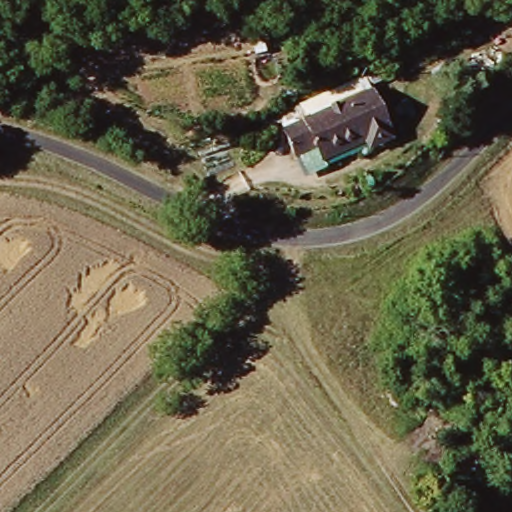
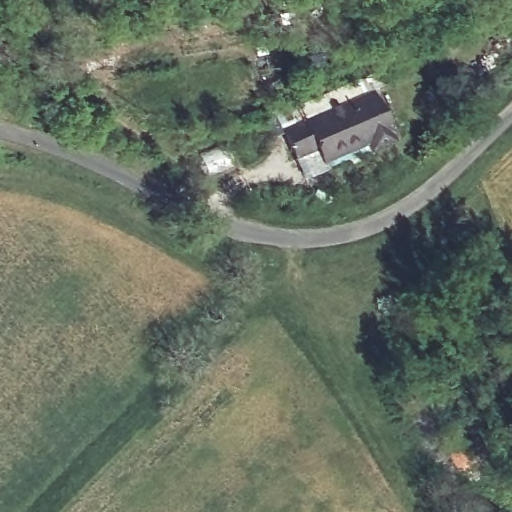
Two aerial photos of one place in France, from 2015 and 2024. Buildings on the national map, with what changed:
unchanged [(291,147),(281,126),(370,90),(388,137),(362,145),(356,131),(313,147),(310,139),(291,147)]

